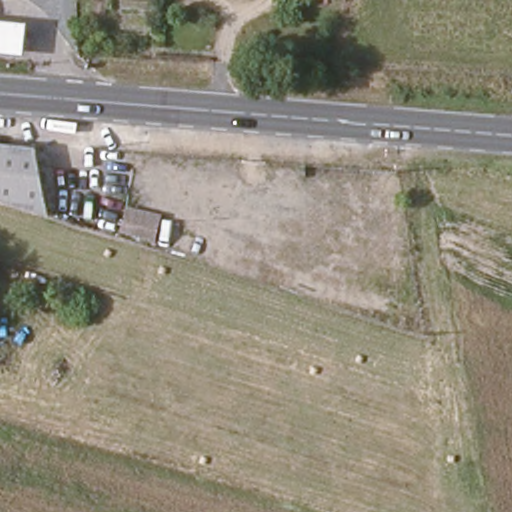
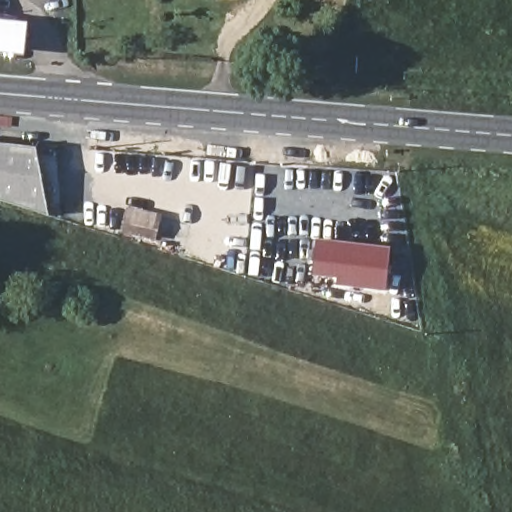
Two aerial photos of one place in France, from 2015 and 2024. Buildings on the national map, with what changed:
unchanged [(28,23),(24,52),(0,49),(0,19),(28,23)]
unchanged [(20,138),(20,144),(40,145),(52,214),(0,197),(0,136),(20,138)]
unchanged [(154,241),(119,232),(125,206),(161,213),(154,241)]
new [(385,292),(335,286),(336,279),(311,277),(316,240),(391,247),(385,292)]

